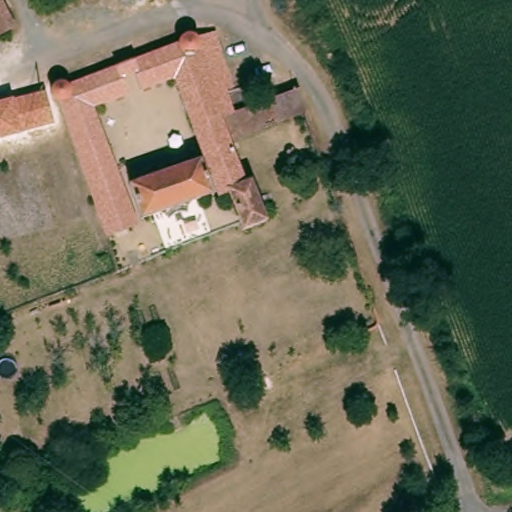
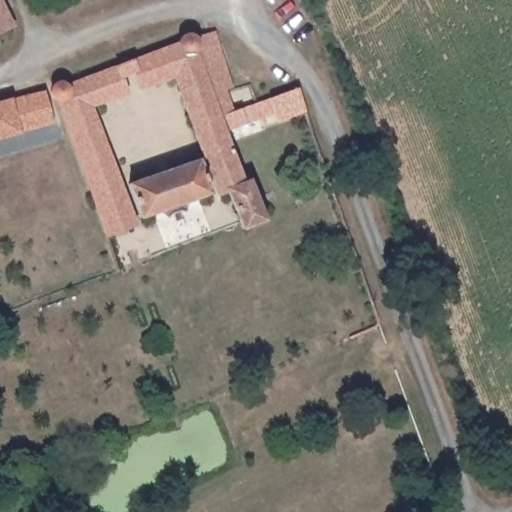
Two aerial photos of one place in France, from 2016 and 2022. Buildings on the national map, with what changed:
unchanged [(13,27),(0,35),(0,1),(13,27)]
unchanged [(229,140),(237,166),(251,161),(256,176),(249,178),(258,202),(264,221),(242,229),(240,226),(229,192),(218,196),(211,176),(203,179),(208,196),(139,219),(127,185),(204,157),(174,75),(141,86),(131,60),(169,45),(177,42),(177,41),(179,36),(183,32),(188,31),(193,32),(197,36),(199,41),(198,46),(195,50),(197,57),(217,111),(218,115),(270,98),(298,88),(308,114),(229,140)]
unchanged [(54,82),(59,81),(64,82),(68,85),(117,66),(127,92),(93,106),(134,227),(105,237),(58,102),(57,102),(52,101),(49,97),(49,93),(49,92),(49,87),(50,86),(52,83),(54,82)]
unchanged [(43,92),(50,123),(0,136),(0,103),(43,92)]

